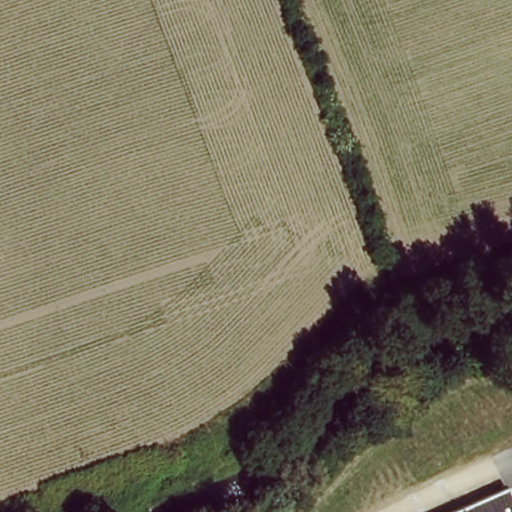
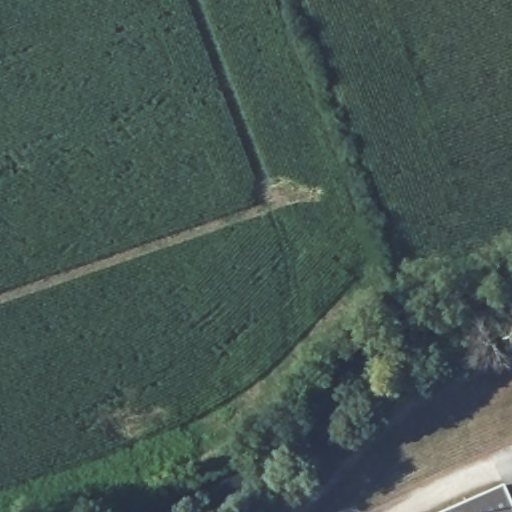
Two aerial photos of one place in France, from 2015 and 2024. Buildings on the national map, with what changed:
unchanged [(503,486),(512,505),(512,512),(446,512),(503,486)]

